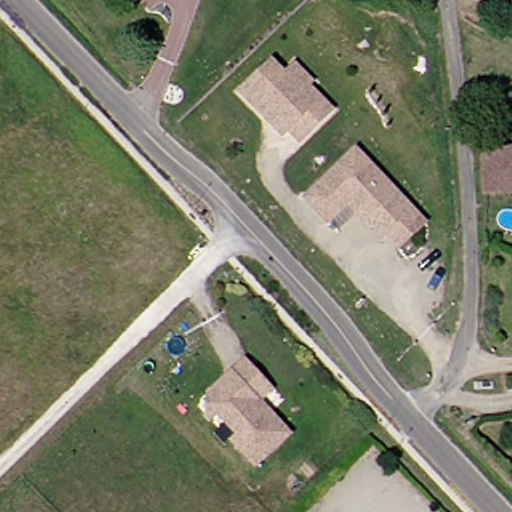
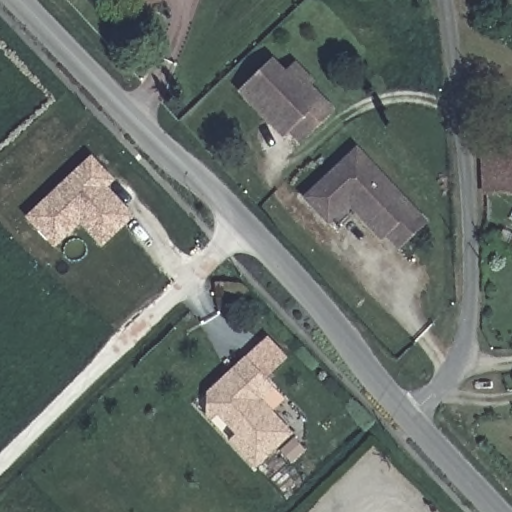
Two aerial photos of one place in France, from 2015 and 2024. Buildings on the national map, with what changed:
unchanged [(265,120),(240,95),(271,64),(283,77),(293,66),(311,83),(307,87),(332,112),(300,144),(288,133),(282,138),(265,120)]
unchanged [(512,80),(512,126),(490,109),(512,80)]
unchanged [(502,232),(475,233),(468,147),(512,145),(512,193),(501,193),(502,232)]
unchanged [(357,150),(427,222),(401,248),(388,235),(383,239),(350,205),(330,224),(306,201),(357,150)]
new [(91,159),(104,174),(111,180),(104,187),(131,217),(102,244),(80,221),(69,231),(55,245),(29,218),(43,204),(91,159)]
unchanged [(277,387),(263,399),(294,432),(258,465),(233,439),(239,434),(217,410),(212,416),(207,411),(211,391),(234,369),(248,357),(277,387)]

